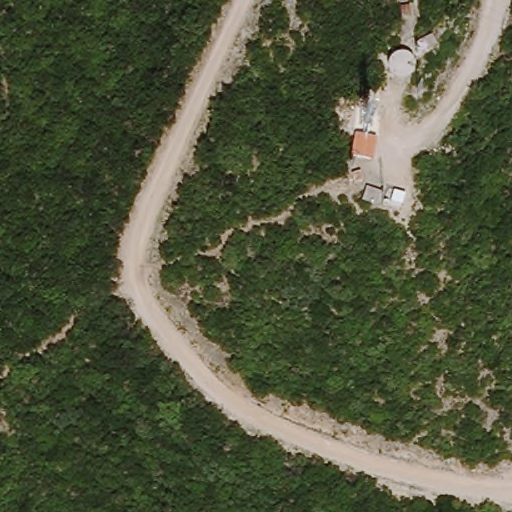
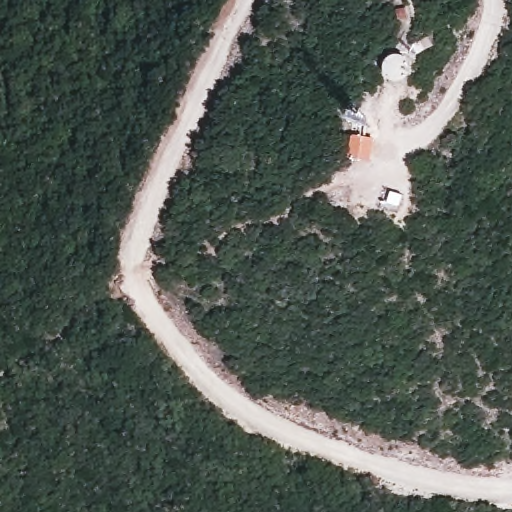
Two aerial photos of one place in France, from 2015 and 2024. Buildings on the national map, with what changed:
unchanged [(417,73),(415,80),(410,85),(403,88),(396,87),(390,83),(386,76),(386,69),(390,62),(395,58),(403,57),(410,59),(415,65),(417,73)]

